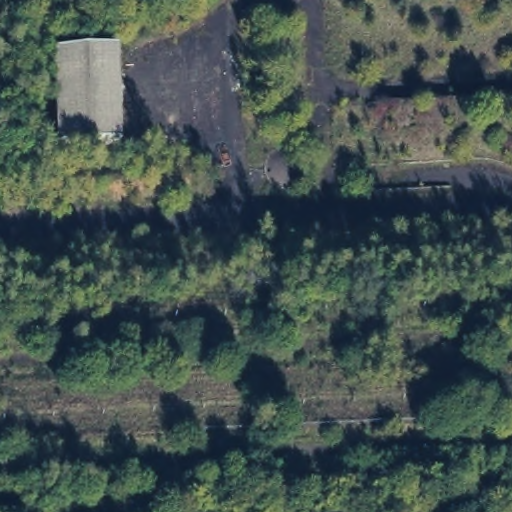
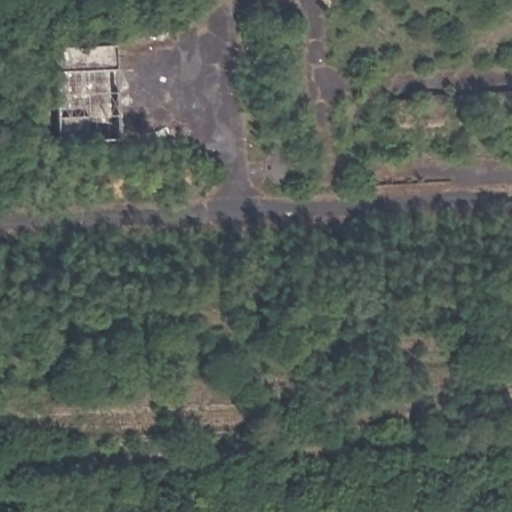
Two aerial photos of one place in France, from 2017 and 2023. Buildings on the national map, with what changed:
unchanged [(53,36),(124,32),(132,134),(58,138),(53,36)]

